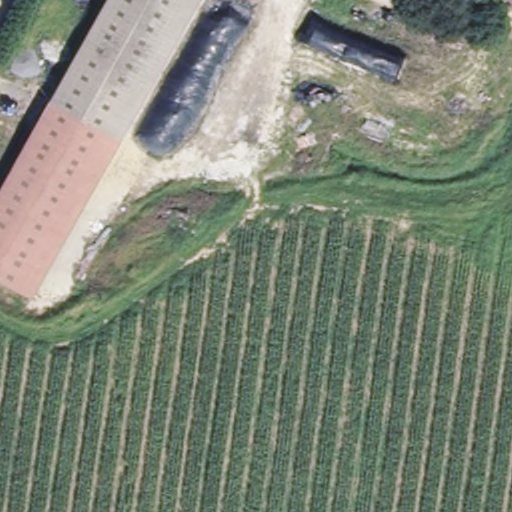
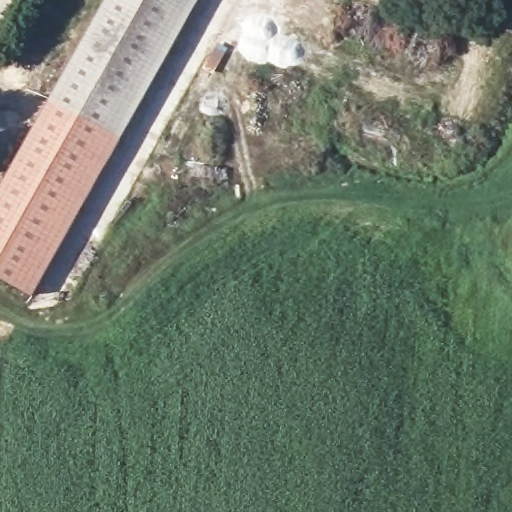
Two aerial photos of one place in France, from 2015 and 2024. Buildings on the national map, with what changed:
unchanged [(111,121),(55,87),(106,0),(183,0),(113,122),(111,121)]
unchanged [(123,129),(113,122),(183,0),(201,0),(125,131),(123,129)]
unchanged [(20,277),(0,265),(0,184),(55,87),(111,121),(20,277)]
unchanged [(123,129),(33,285),(20,277),(111,121),(113,122),(123,129)]

